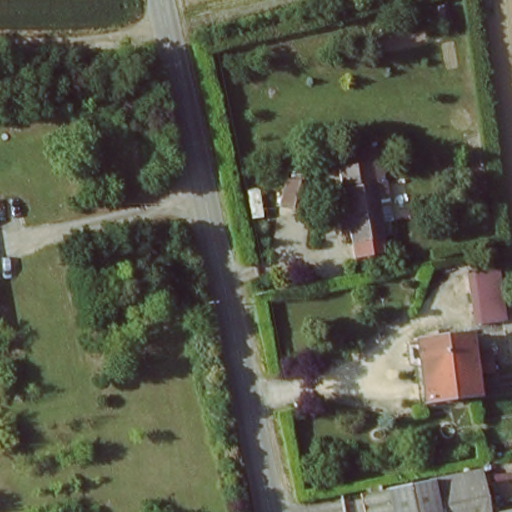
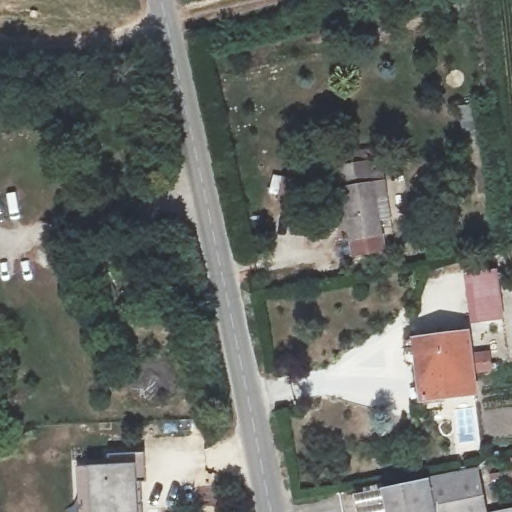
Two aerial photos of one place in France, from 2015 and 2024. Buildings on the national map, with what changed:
unchanged [(383,231),(351,237),(341,183),(372,178),(383,231)]
unchanged [(470,293),(495,287),(502,323),(477,323),(470,293)]
unchanged [(472,394),(425,402),(415,344),(463,336),(472,394)]
new [(87,506),(85,464),(111,463),(110,453),(145,452),(146,481),(133,482),(134,512),(87,512),(87,506)]
new [(512,478),(509,458),(512,457),(512,478)]
unchanged [(481,476),(487,512),(436,512),(430,484),(481,476)]
new [(142,481),(142,512),(134,512),(133,482),(142,481)]
unchanged [(436,512),(363,512),(360,495),(389,490),(430,484),(436,512)]

